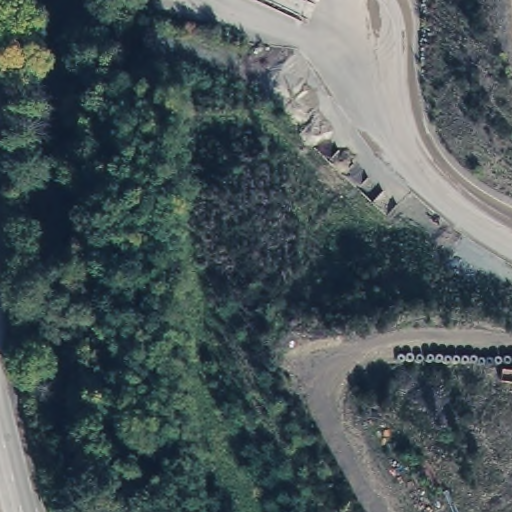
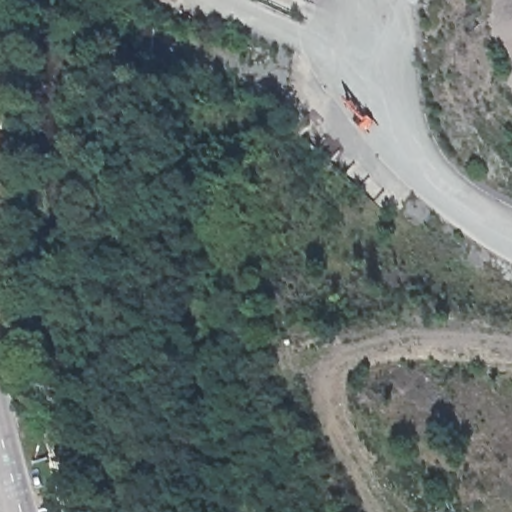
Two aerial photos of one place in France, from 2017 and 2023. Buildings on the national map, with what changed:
unchanged [(192,26),(192,15),(170,10),(170,1),(203,4),(217,5),(217,16),(215,27),(192,26)]

